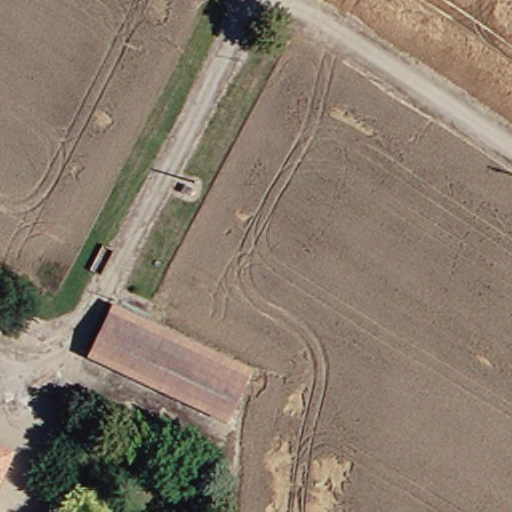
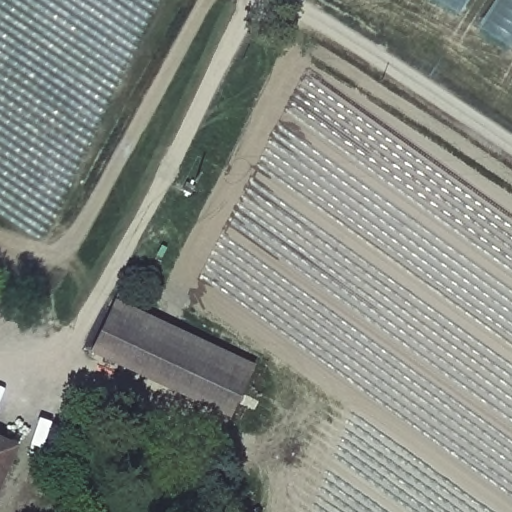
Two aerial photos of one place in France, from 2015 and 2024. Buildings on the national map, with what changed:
new [(455,15),(432,0),(466,0),(455,15)]
new [(508,50),(476,28),(495,0),(512,0),(512,44),(508,50)]
unchanged [(258,366),(233,415),(212,405),(101,351),(125,302),(207,340),(258,366)]
unchanged [(0,496),(0,441),(17,450),(2,492),(0,496)]

